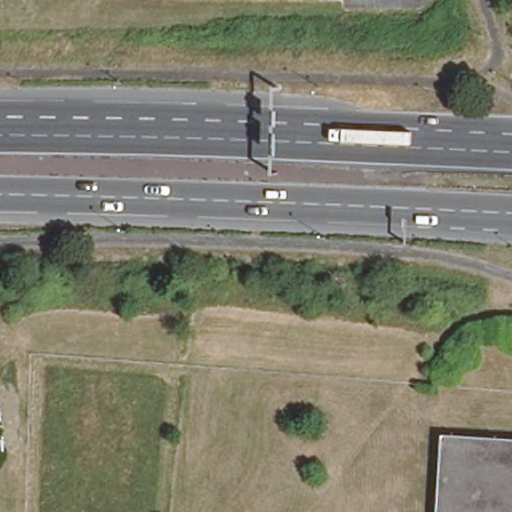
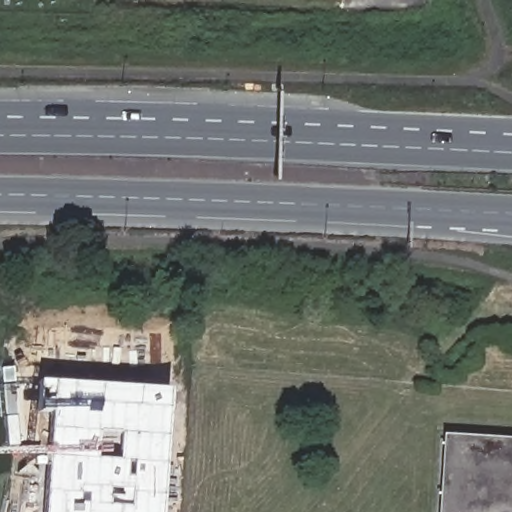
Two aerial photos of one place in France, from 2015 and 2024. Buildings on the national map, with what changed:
new [(48,415),(32,414),(36,382),(167,391),(160,512),(43,512),(48,415)]
unchanged [(448,448),(512,452),(512,512),(445,512),(448,448)]

